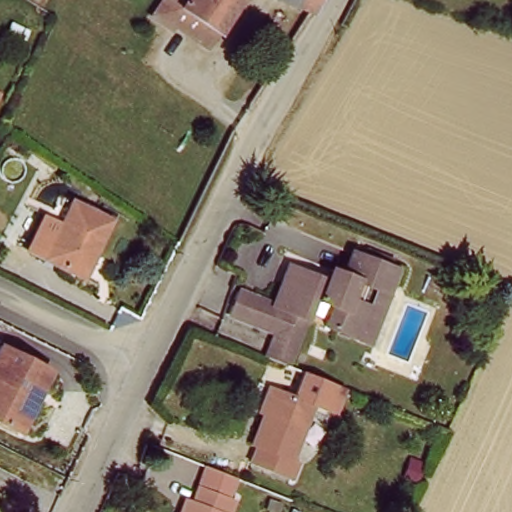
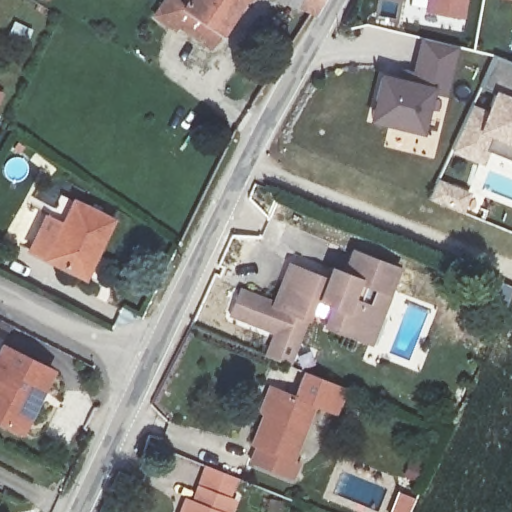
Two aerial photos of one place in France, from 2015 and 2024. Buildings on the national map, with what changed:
unchanged [(238,0),(223,23),(188,2),(189,0),(237,0),(238,0)]
unchanged [(324,8),(302,0),(328,0),(324,8)]
new [(463,17),(425,10),(427,0),(466,0),(463,17)]
new [(422,37),(459,46),(446,96),(432,92),(423,133),(368,120),(380,72),(399,77),(401,68),(413,71),(422,37)]
unchanged [(271,61),(279,44),(293,49),(285,66),(271,61)]
new [(495,57),(512,63),(512,160),(489,151),(484,163),(452,151),(495,57)]
unchanged [(113,220),(84,278),(45,259),(74,201),(113,220)]
unchanged [(361,332),(330,320),(337,301),(317,294),(293,365),(292,364),(270,356),(279,330),(233,314),(240,291),(278,304),(292,263),(331,278),(335,266),(347,272),(355,247),(398,263),(390,286),(374,337),(361,332)]
unchanged [(0,424),(0,351),(2,348),(37,366),(49,372),(34,401),(18,433),(0,424)]
unchanged [(294,458),(301,462),(295,479),(253,464),(258,447),(253,444),(264,416),(258,414),(268,387),(274,389),(313,404),(294,458)]
unchanged [(222,512),(183,512),(187,501),(195,504),(200,488),(228,498),(222,512)]

